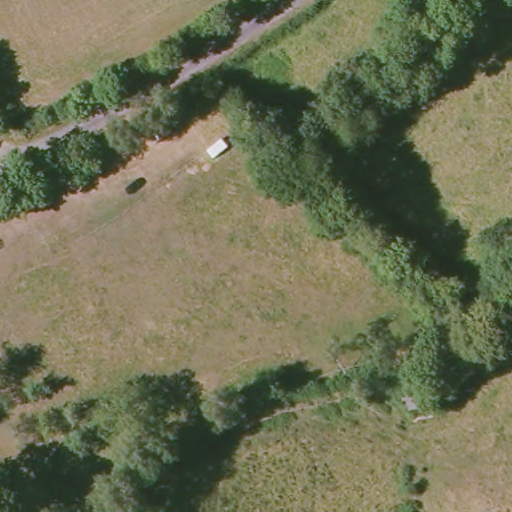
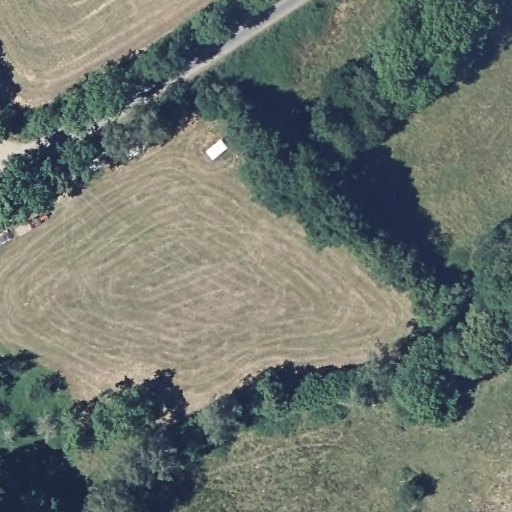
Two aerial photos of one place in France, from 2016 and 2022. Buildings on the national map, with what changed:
unchanged [(408,410),(405,384),(445,377),(449,403),(408,410)]

